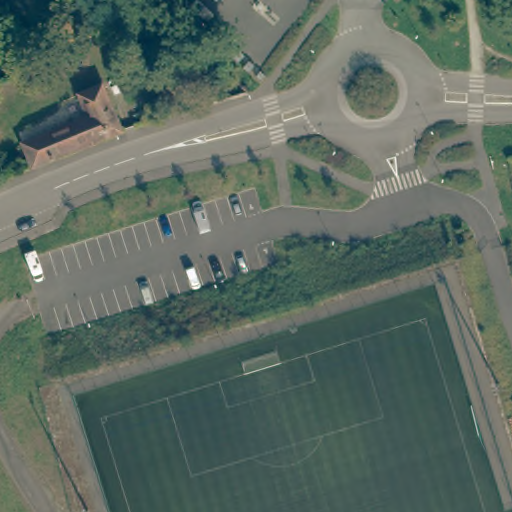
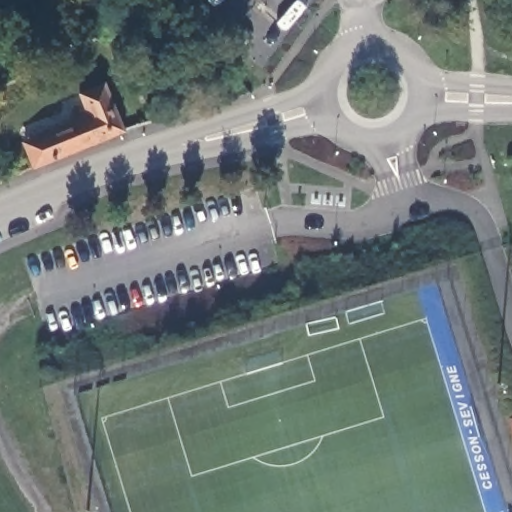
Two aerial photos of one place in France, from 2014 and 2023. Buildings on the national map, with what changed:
unchanged [(28,137),(90,113),(82,89),(105,81),(122,126),(37,161),(28,137)]

